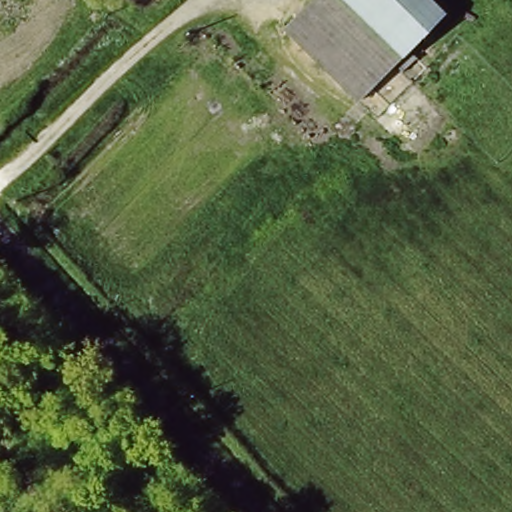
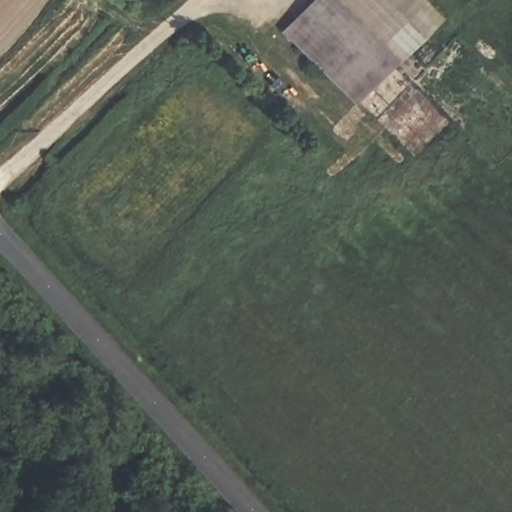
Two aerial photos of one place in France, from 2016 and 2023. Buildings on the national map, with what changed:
unchanged [(356,101),(287,30),(318,0),(329,0),(393,66),(356,101)]
unchanged [(426,0),(443,19),(393,66),(329,0),(426,0)]

